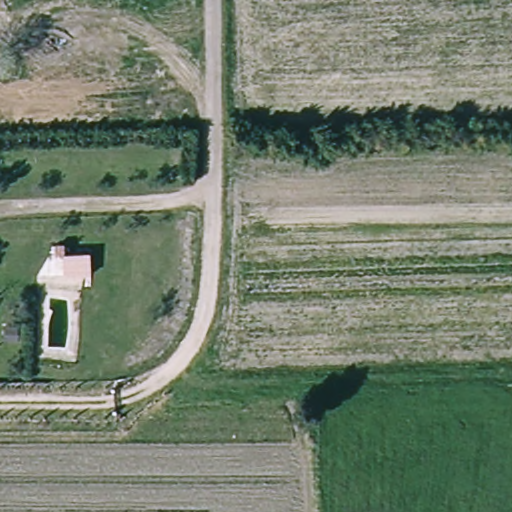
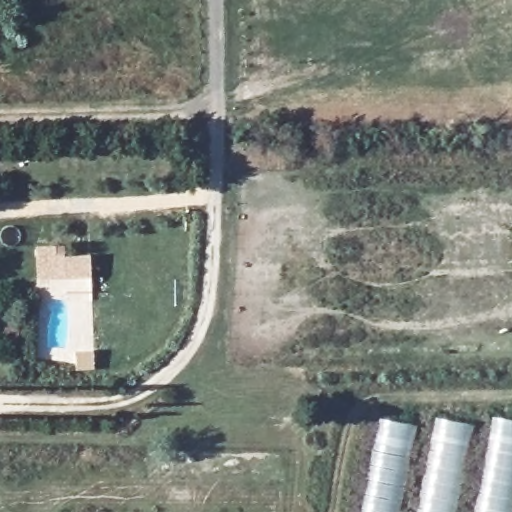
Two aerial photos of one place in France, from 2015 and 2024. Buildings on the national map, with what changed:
new [(89,256),(90,277),(66,278),(66,257),(89,256)]
new [(435,431),(439,415),(495,427),(497,416),(512,418),(512,512),(361,512),(379,417),(435,431)]

